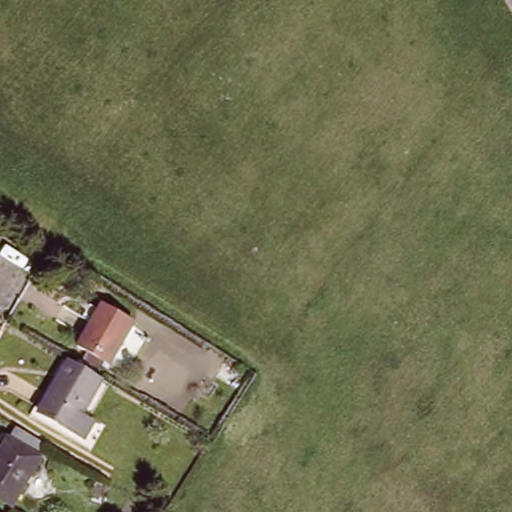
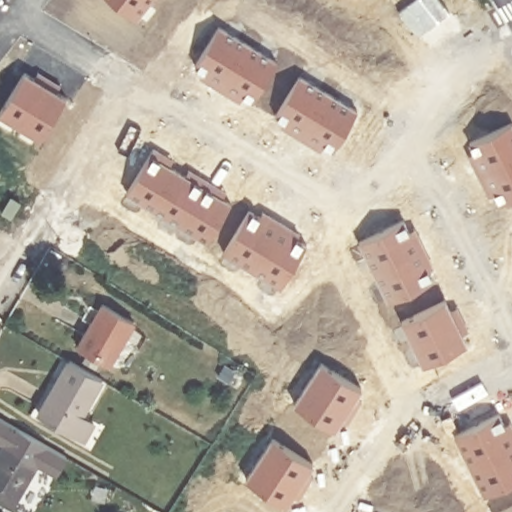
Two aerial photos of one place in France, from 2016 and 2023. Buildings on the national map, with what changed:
new [(136,19),(112,0),(151,0),(136,19)]
new [(219,26),(276,61),(252,100),(236,90),(232,96),(207,81),(211,75),(195,65),(219,26)]
new [(37,71),(60,85),(56,92),(66,98),(41,140),(0,114),(0,112),(24,72),(34,78),(37,71)]
new [(300,75),(357,110),(333,150),(316,140),(313,146),(288,131),(292,125),(275,115),(300,75)]
new [(511,122),(512,123),(512,197),(500,202),(491,185),(485,189),(472,162),(478,159),(470,142),(511,122)]
new [(153,148),(167,156),(163,162),(191,180),(195,174),(220,189),(216,195),(231,204),(207,243),(126,193),(153,148)]
new [(249,210),(265,220),(268,215),(293,230),(290,235),(306,245),(281,288),(223,253),(249,210)]
new [(403,220),(412,238),(417,235),(430,261),(425,264),(433,281),(389,303),(359,242),(403,220)]
new [(450,311),(457,308),(468,332),(462,335),(467,345),(423,367),(402,322),(445,300),(450,311)]
unchanged [(106,314),(132,331),(109,367),(82,350),(106,314)]
unchanged [(85,435),(70,427),(41,410),(70,362),(100,380),(81,410),(95,419),(85,435)]
new [(347,425),(341,420),(335,430),(294,403),(321,362),(362,389),(355,398),(361,402),(347,425)]
new [(499,414),(507,431),(512,429),(512,483),(485,497),(455,436),(499,414)]
unchanged [(0,498),(0,460),(15,433),(49,453),(16,507),(0,498)]
new [(298,499),(292,495),(286,505),(245,479),(272,437),(313,463),(307,473),(313,477),(298,499)]
new [(500,512),(512,506),(512,512),(500,512)]

